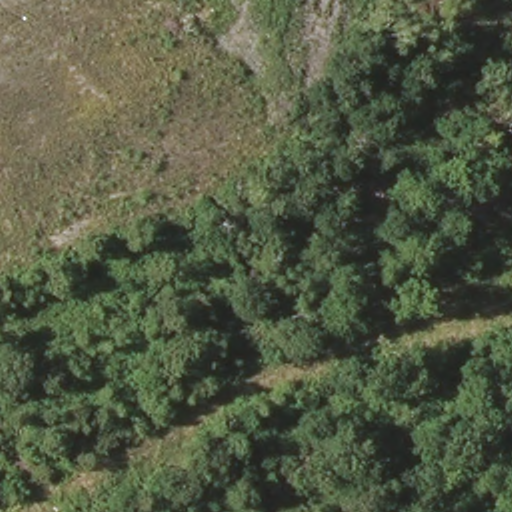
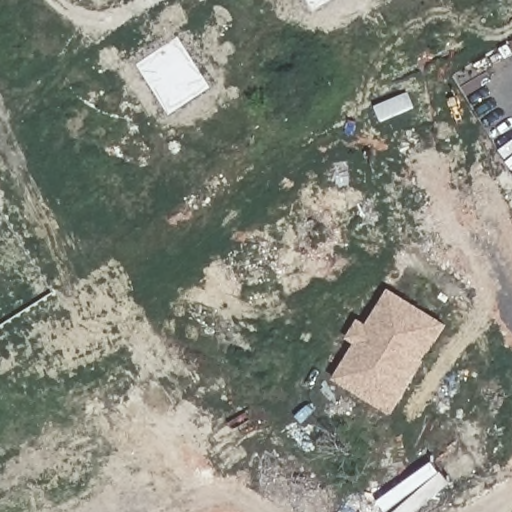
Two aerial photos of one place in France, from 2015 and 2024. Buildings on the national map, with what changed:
new [(446,323),(388,417),(332,383),(388,289),(446,323)]

